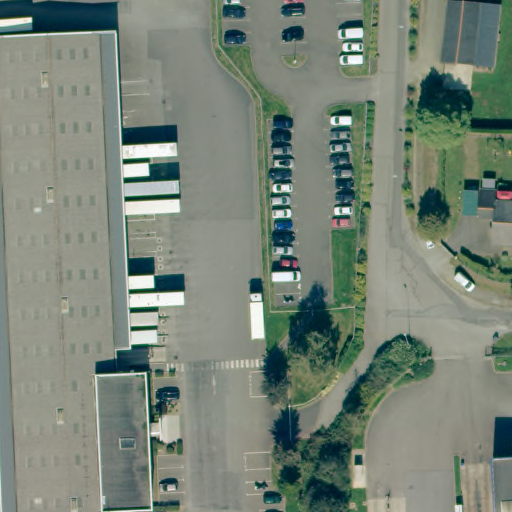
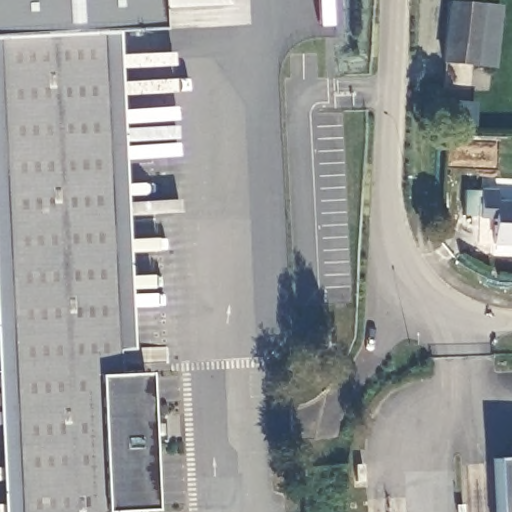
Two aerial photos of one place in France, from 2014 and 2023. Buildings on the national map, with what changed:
new [(118,33),(86,33),(0,37),(0,0),(158,0),(159,30),(118,33)]
unchanged [(486,61),(433,58),(439,0),(475,0),(492,1),(486,61)]
unchanged [(108,512),(1,512),(0,496),(0,37),(86,33),(101,375),(130,373),(133,424),(134,437),(137,511),(108,512)]
unchanged [(497,187),(496,198),(512,198),(512,240),(493,239),(494,213),(479,213),(481,186),(497,187)]
unchanged [(493,453),(512,452),(512,512),(496,512),(493,453)]
unchanged [(462,505),(462,512),(457,512),(457,506),(462,505)]

